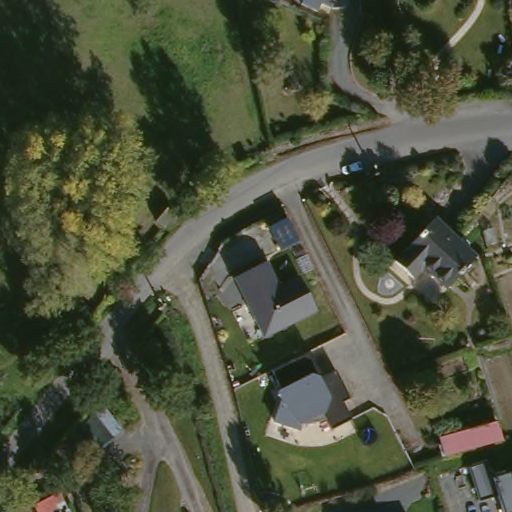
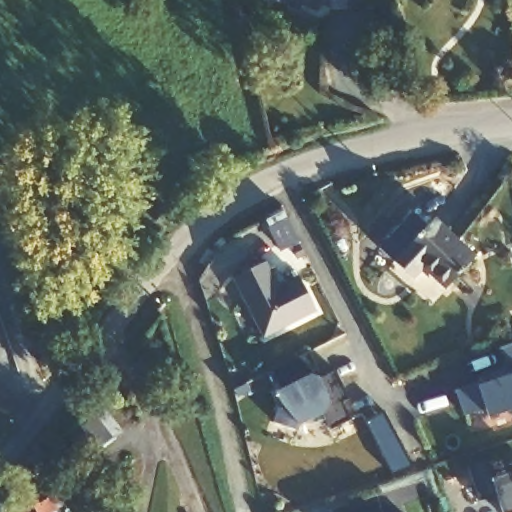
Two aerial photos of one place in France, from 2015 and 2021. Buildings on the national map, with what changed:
unchanged [(335,9),(325,5),(322,14),(305,8),(308,0),(352,0),(353,6),(335,9)]
unchanged [(446,289),(430,274),(428,277),(421,270),(420,272),(412,279),(394,263),(434,219),(475,258),(446,289)]
unchanged [(233,281),(267,264),(279,286),(298,278),(315,312),(264,336),(233,281)]
new [(485,409),(464,416),(456,390),(485,380),(483,374),(505,367),(499,349),(512,344),(512,411),(487,418),(485,409)]
unchanged [(308,353),(320,380),(335,374),(348,400),(340,404),(350,422),(332,431),(324,414),(297,426),(273,423),(281,402),(274,394),(281,391),(271,370),(308,353)]
unchanged [(114,439),(116,446),(85,467),(66,439),(97,421),(94,414),(105,407),(124,432),(114,439)]
unchanged [(491,479),(507,474),(510,484),(512,483),(512,512),(502,512),(497,496),(478,501),(469,467),(486,462),(491,479)]

